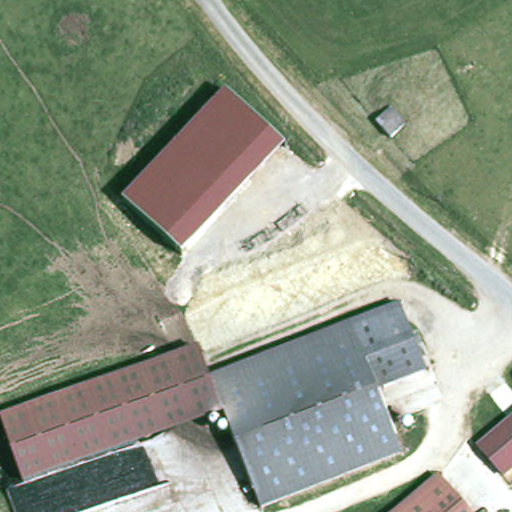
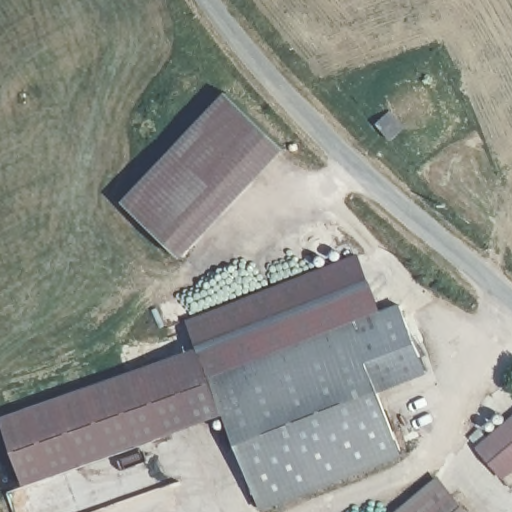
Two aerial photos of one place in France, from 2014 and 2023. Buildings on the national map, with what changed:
unchanged [(286,146),(182,257),(123,203),(226,94),(286,146)]
new [(210,379),(198,347),(188,321),(360,255),(381,312),(210,379)]
unchanged [(400,304),(427,373),(378,391),(402,453),(260,508),(224,414),(210,379),(400,304)]
unchanged [(210,379),(224,414),(22,482),(0,419),(0,417),(198,347),(210,379)]
unchanged [(512,419),(512,468),(502,477),(477,451),(498,432),(512,419)]
unchanged [(438,474),(470,512),(394,512),(438,474)]

